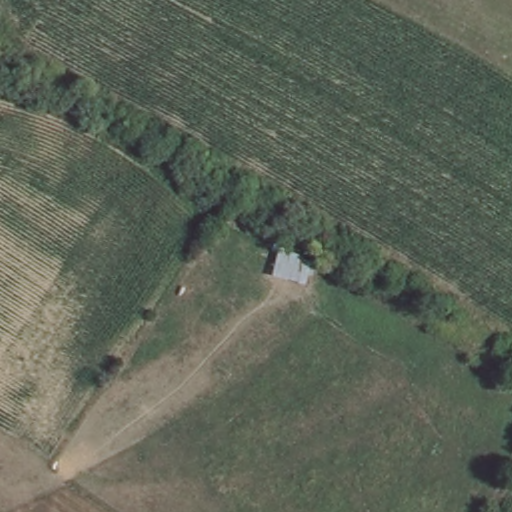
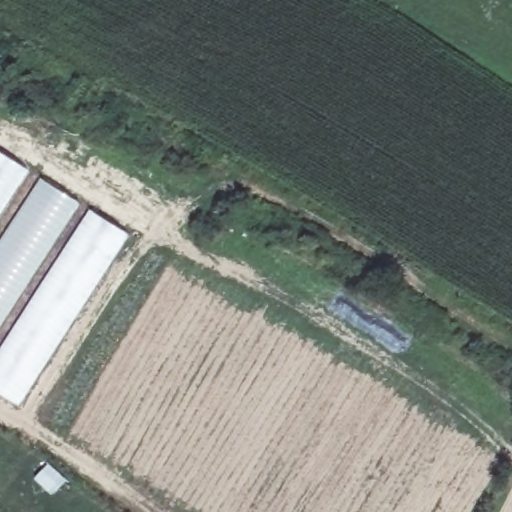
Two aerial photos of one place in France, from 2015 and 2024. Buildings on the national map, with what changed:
new [(0,216),(0,155),(28,172),(0,216)]
new [(0,328),(0,242),(40,182),(77,206),(0,328)]
new [(16,406),(0,395),(0,350),(89,215),(126,238),(16,406)]

